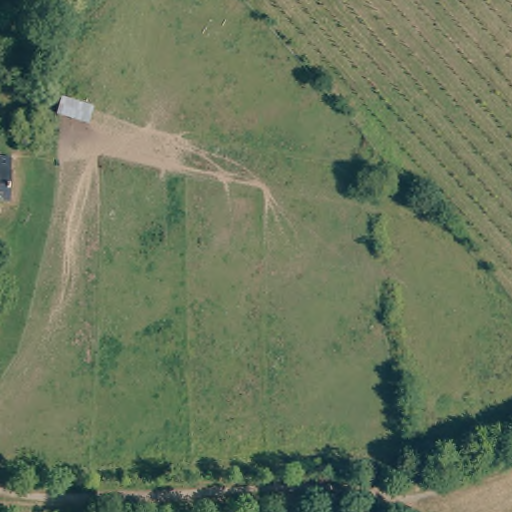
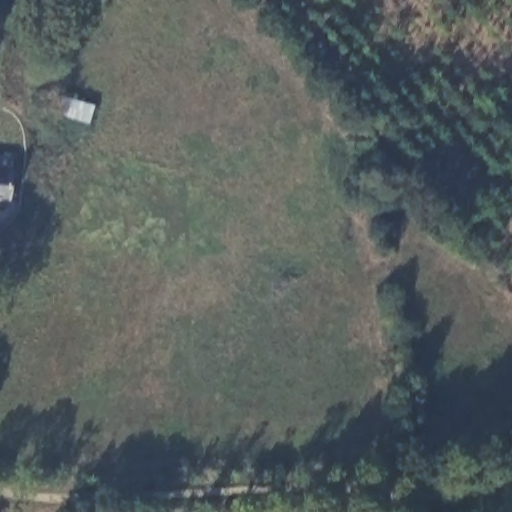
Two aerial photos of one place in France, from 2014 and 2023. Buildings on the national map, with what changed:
unchanged [(9,201),(0,200),(0,159),(10,159),(9,201)]

